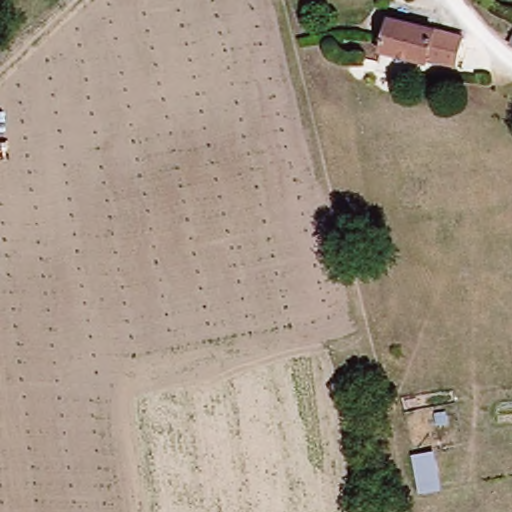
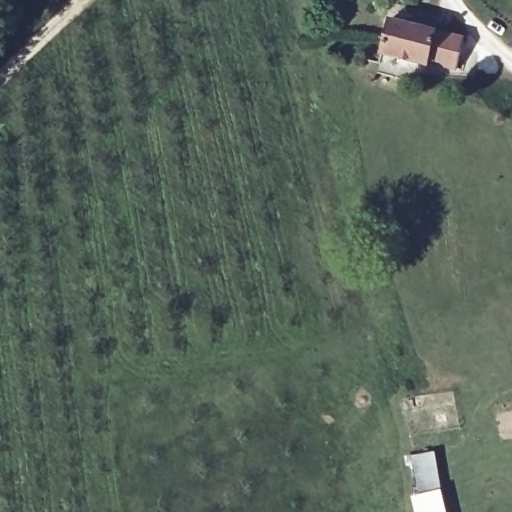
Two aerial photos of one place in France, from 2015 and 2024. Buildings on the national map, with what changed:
unchanged [(377,52),(380,17),(453,39),(447,73),(377,52)]
unchanged [(504,46),(512,29),(512,52),(504,46)]
new [(420,495),(410,458),(434,452),(440,472),(436,473),(447,512),(415,512),(411,498),(420,495)]

